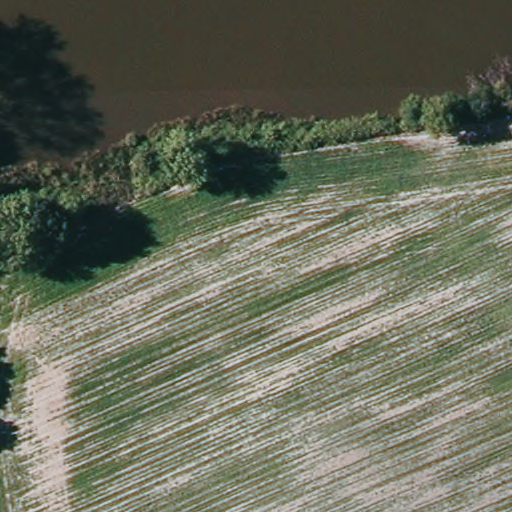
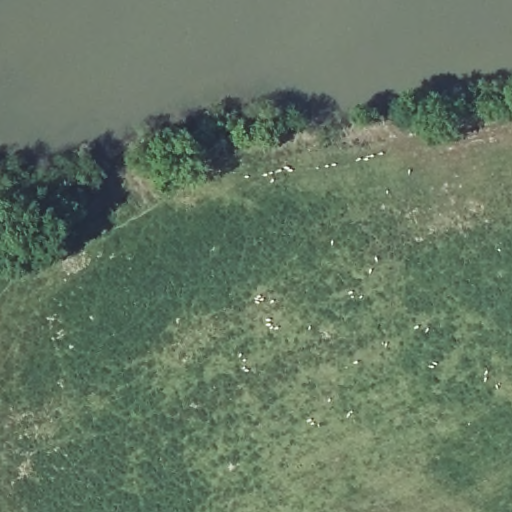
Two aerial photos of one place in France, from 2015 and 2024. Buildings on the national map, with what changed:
[]

